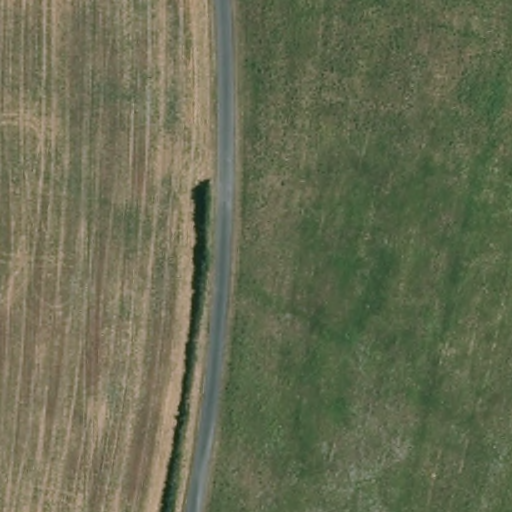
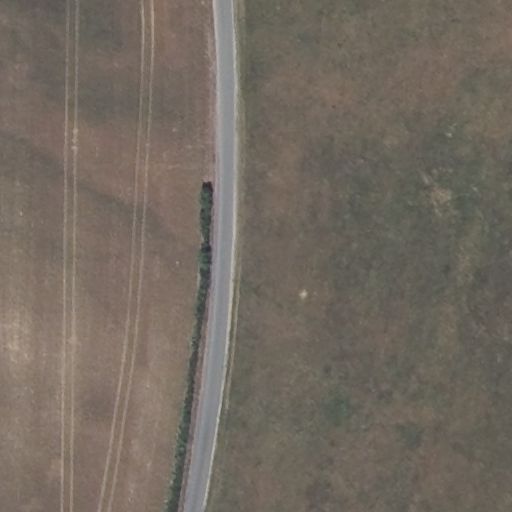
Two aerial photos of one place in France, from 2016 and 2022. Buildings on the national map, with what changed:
[]

